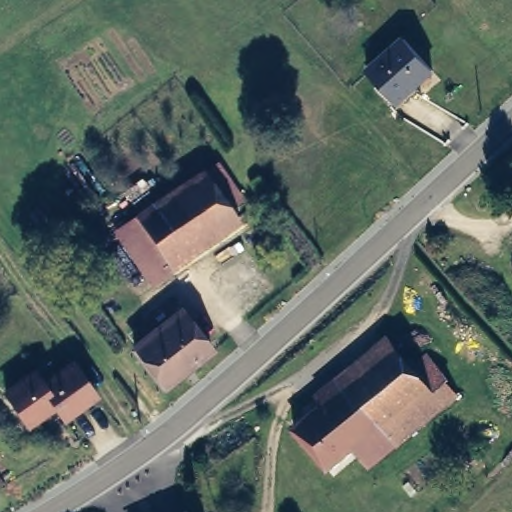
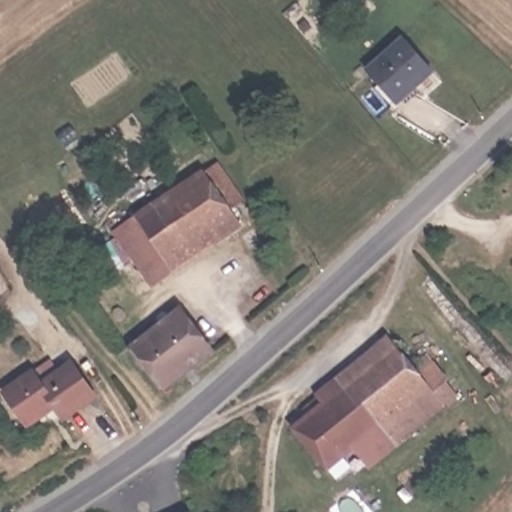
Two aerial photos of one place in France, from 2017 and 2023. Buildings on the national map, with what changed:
unchanged [(434,70),(397,105),(367,73),(403,37),(434,70)]
unchanged [(152,276),(146,266),(119,225),(204,167),(232,207),(166,252),(172,262),(152,276)]
unchanged [(135,332),(147,323),(152,331),(175,313),(208,353),(165,389),(132,347),(140,340),(135,332)]
unchanged [(460,392),(365,462),(355,447),(330,471),(300,427),(321,410),(310,391),(387,336),(404,356),(430,350),(460,392)]
unchanged [(29,429),(7,396),(37,376),(45,387),(75,367),(97,400),(64,422),(57,411),(29,429)]
unchanged [(187,512),(190,511),(190,512),(187,512)]

